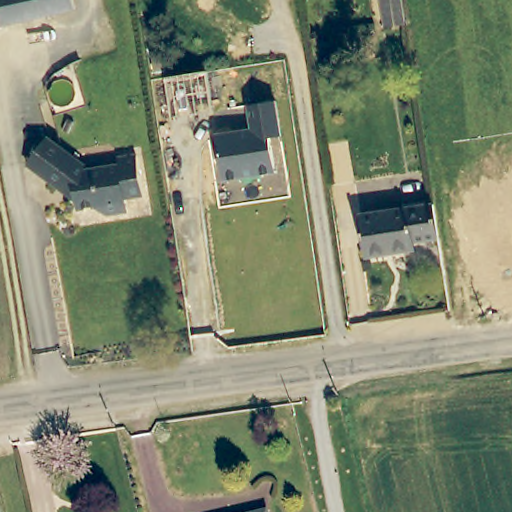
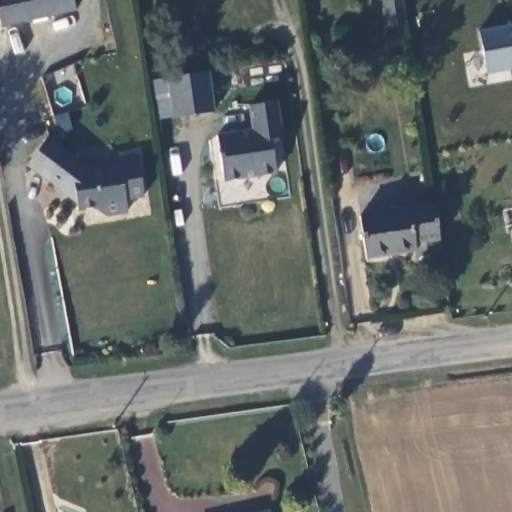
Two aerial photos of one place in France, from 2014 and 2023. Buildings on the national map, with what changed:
unchanged [(67,7),(0,22),(0,0),(65,0),(67,7)]
unchanged [(406,21),(386,23),(382,0),(402,0),(406,21)]
new [(487,75),(479,30),(512,25),(512,70),(487,75)]
unchanged [(215,111),(174,116),(166,79),(208,72),(215,111)]
unchanged [(282,136),(270,138),(276,171),(224,180),(217,134),(254,129),(250,105),(277,102),(282,136)]
unchanged [(121,165),(140,163),(146,202),(128,205),(130,218),(107,221),(97,214),(81,216),(78,199),(66,191),(61,194),(30,171),(50,145),(93,177),(122,173),(121,165)]
unchanged [(354,218),(402,211),(402,209),(427,206),(432,241),(407,244),(409,253),(360,260),(354,218)]
demolished [(362,497),(366,512),(336,512),(335,504),(362,497)]
unchanged [(256,512),(266,509),(266,512),(256,512)]

